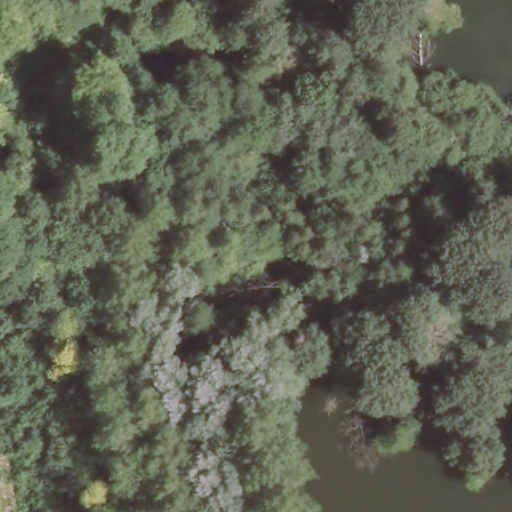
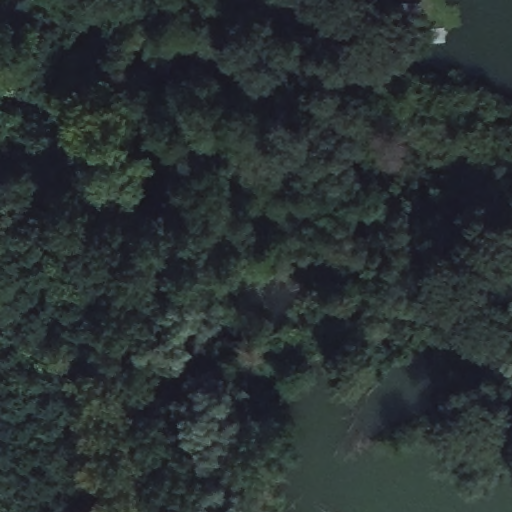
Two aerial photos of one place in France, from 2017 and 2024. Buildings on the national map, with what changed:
unchanged [(196,503),(182,506),(173,464),(186,461),(196,503)]

